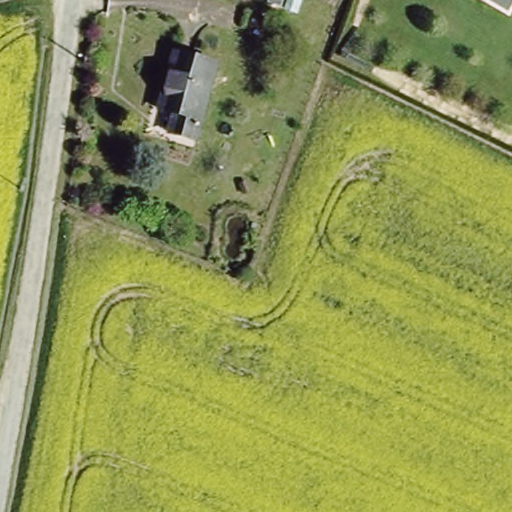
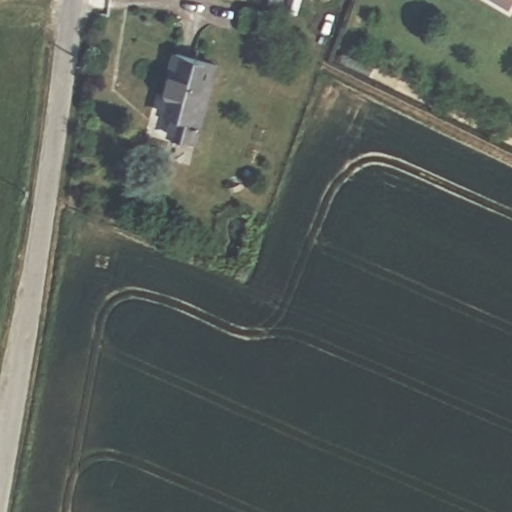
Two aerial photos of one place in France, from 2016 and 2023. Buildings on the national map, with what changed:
unchanged [(196,136),(172,131),(177,110),(163,107),(178,50),(216,60),(196,136)]

